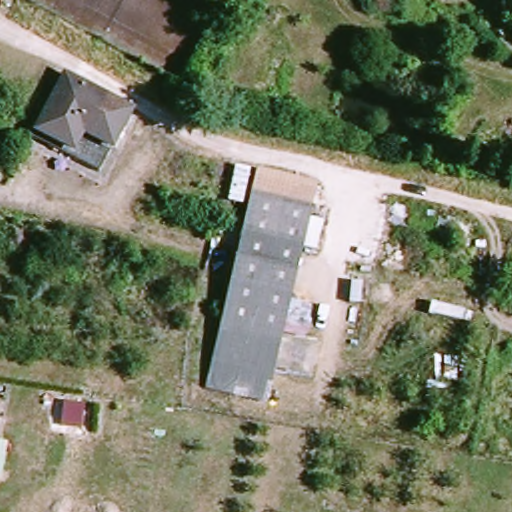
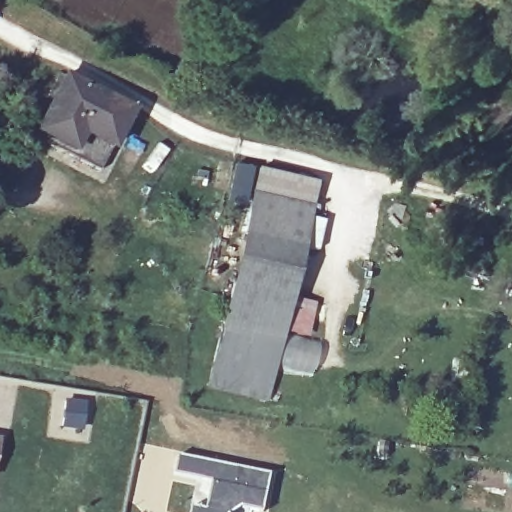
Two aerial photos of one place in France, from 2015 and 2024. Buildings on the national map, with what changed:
unchanged [(98,169),(31,131),(64,73),(132,110),(98,169)]
unchanged [(267,169),(322,184),(316,207),(261,192),(267,169)]
unchanged [(261,192),(316,207),(303,253),(249,235),(261,192)]
unchanged [(303,253),(277,347),(221,332),(230,301),(242,256),(249,235),(303,253)]
unchanged [(277,347),(262,404),(205,390),(221,332),(277,347)]
new [(204,510),(210,484),(174,475),(179,455),(272,474),(263,512),(256,512),(242,509),(238,512),(188,512),(189,507),(204,510)]

